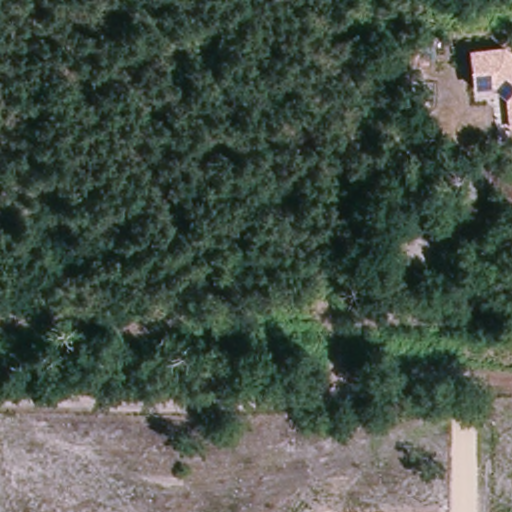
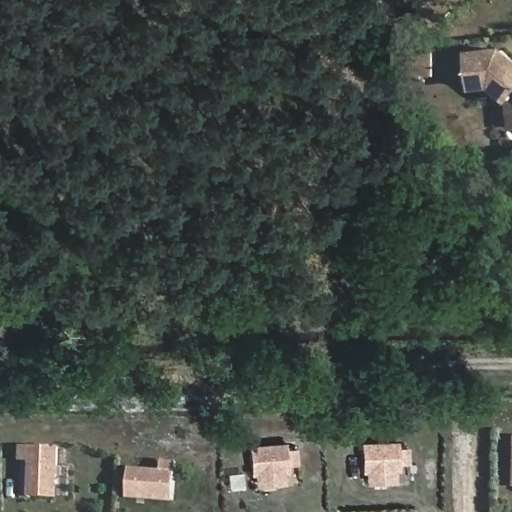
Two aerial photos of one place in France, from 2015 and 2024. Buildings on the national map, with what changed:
unchanged [(472,93),(467,51),(502,47),(512,55),(512,131),(510,131),(507,102),(490,90),(472,93)]
new [(400,465),(400,472),(396,472),(396,483),(365,485),(362,443),(398,441),(399,448),(409,448),(410,465),(400,465)]
new [(289,467),(289,473),(285,473),(286,485),(254,488),(250,445),(287,442),(287,449),(297,449),(298,465),(289,467)]
new [(17,460),(19,445),(59,447),(58,496),(28,496),(29,459),(17,460)]
new [(172,501),(127,497),(130,467),(161,469),(162,459),(177,460),(172,501)]

